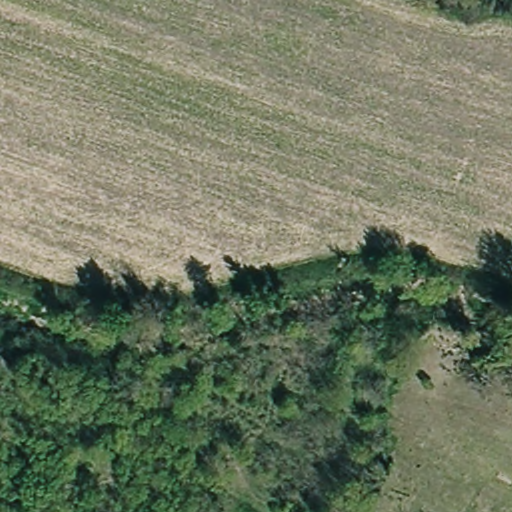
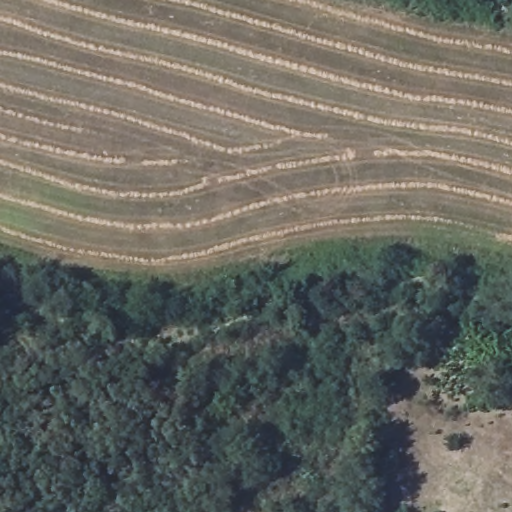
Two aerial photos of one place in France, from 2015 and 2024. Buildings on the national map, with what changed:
[]

